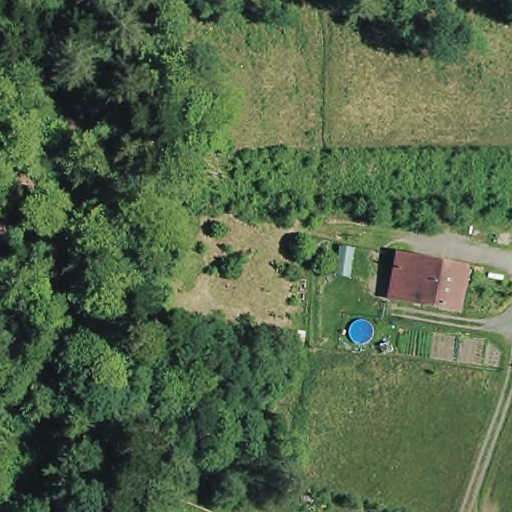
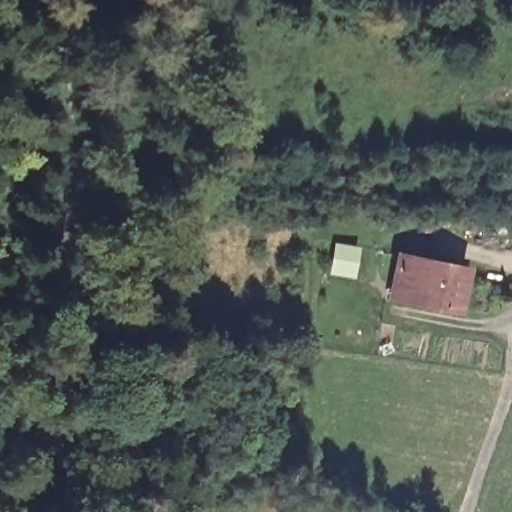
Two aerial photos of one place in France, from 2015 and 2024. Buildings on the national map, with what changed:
unchanged [(456,313),(391,300),(399,260),(464,273),(456,313)]

